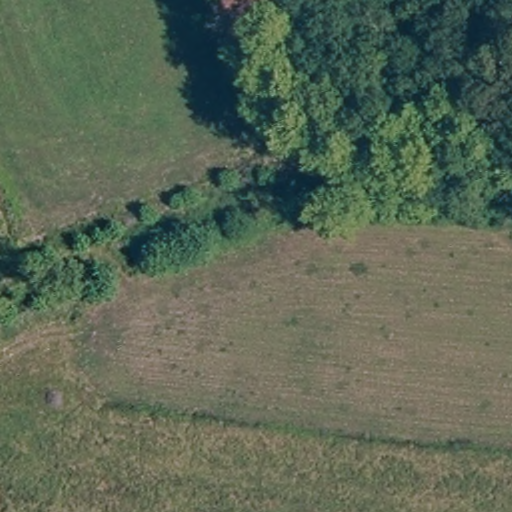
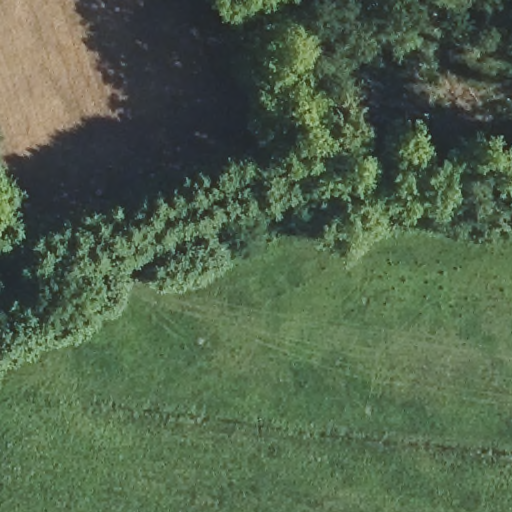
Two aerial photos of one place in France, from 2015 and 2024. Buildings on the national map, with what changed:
[]

